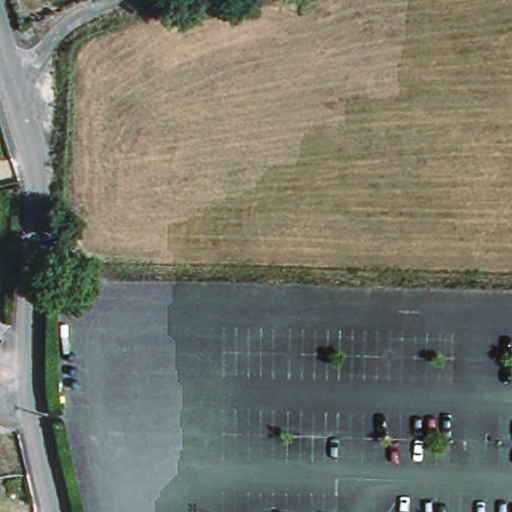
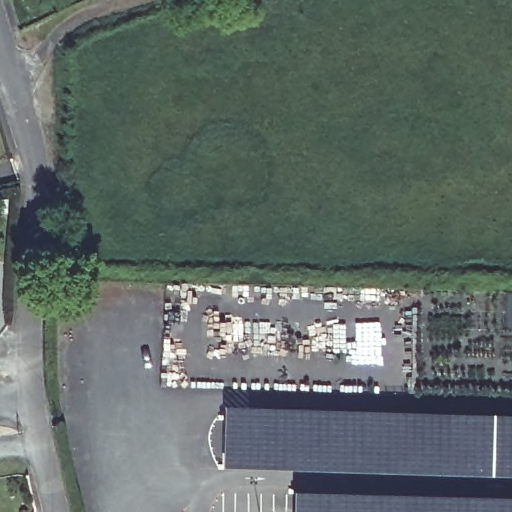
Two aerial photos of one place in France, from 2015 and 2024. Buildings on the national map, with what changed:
new [(225,403),(495,410),(494,477),(332,472),(259,468),(223,468),(225,403)]
new [(495,410),(512,411),(512,478),(494,477),(495,410)]

